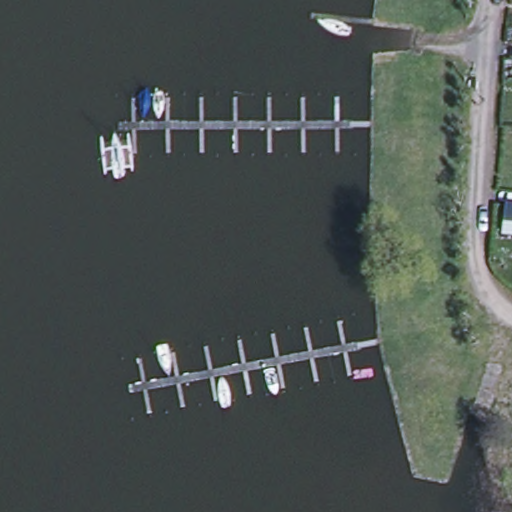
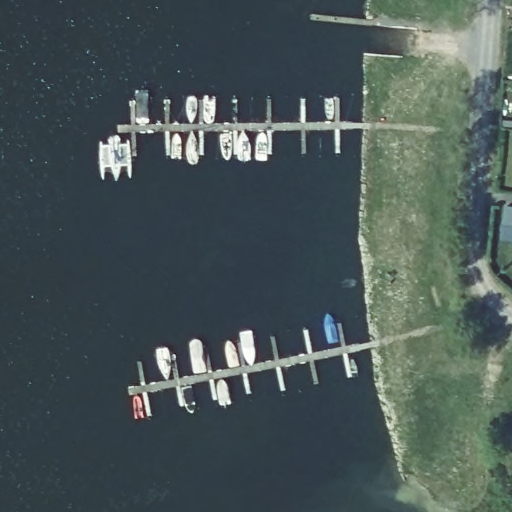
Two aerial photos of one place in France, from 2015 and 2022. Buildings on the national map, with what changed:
unchanged [(512,239),(502,237),(506,203),(512,204),(512,239)]

